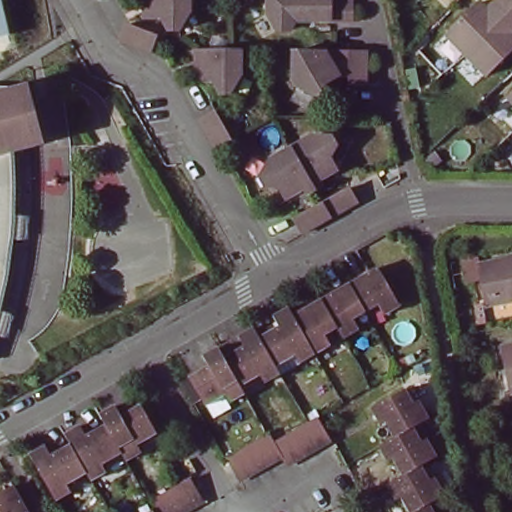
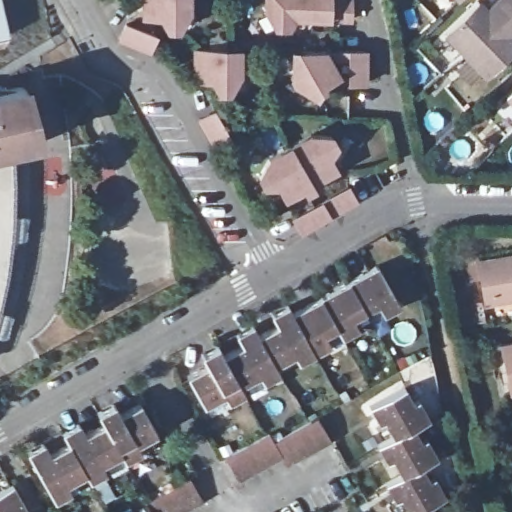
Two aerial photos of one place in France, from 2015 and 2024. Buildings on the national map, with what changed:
unchanged [(0,35),(0,0),(2,0),(10,33),(0,35)]
unchanged [(182,29),(171,29),(162,14),(157,17),(155,17),(154,18),(153,18),(152,17),(151,16),(150,15),(147,9),(154,5),(151,0),(193,0),(193,11),(182,29)]
unchanged [(293,29),(280,28),(271,12),(271,0),(357,0),(357,19),(320,19),(315,10),(307,13),(301,14),(293,29)]
unchanged [(478,0),(487,8),(495,0),(512,0),(512,8),(466,53),(465,53),(445,32),(477,0),(478,0)]
unchanged [(512,8),(512,31),(510,33),(512,35),(512,49),(486,74),(465,53),(466,53),(512,8)]
unchanged [(150,50),(120,39),(125,23),(155,34),(150,50)]
unchanged [(201,49),(245,49),(245,75),(235,92),(223,92),(214,77),(209,80),(208,81),(206,81),(204,81),(203,80),(202,79),(198,73),(206,69),(201,60),(201,49)]
unchanged [(278,49),(352,50),(351,82),(334,82),(335,57),(311,57),(310,66),(316,70),(319,72),(319,76),(317,79),(314,81),(310,80),(301,96),(280,85),(275,76),(284,71),(278,60),(278,49)]
unchanged [(0,92),(0,87),(18,87),(0,92)]
unchanged [(22,87),(26,89),(28,93),(28,98),(26,102),(22,104),(5,109),(10,152),(12,186),(10,231),(7,255),(1,290),(0,294),(0,92),(18,87),(22,87)]
unchanged [(507,95),(512,90),(512,101),(507,95)]
unchanged [(5,109),(22,104),(28,129),(33,129),(37,131),(39,135),(39,140),(37,144),(33,146),(10,152),(5,109)]
unchanged [(230,138),(216,147),(199,118),(213,110),(230,138)]
unchanged [(316,129),(336,129),(342,139),(335,155),(337,157),(338,161),(336,164),(332,166),(330,165),(325,163),(319,166),(326,179),(319,183),(295,141),(316,129)]
unchanged [(311,187),(304,174),(298,177),(298,185),(297,188),(294,189),(290,188),(287,185),(287,183),(269,180),(263,170),(273,153),(295,141),(319,183),(311,187)]
unchanged [(293,217),(321,201),(348,186),(357,202),(330,217),(302,233),(293,217)]
unchanged [(485,291),(481,272),(462,276),(457,254),(477,250),(479,258),(512,252),(512,293),(486,298),(485,291)]
unchanged [(354,281),(382,265),(404,304),(388,313),(382,303),(370,309),(354,281)]
unchanged [(326,297),(354,281),(370,309),(357,317),(363,327),(348,336),(342,325),(326,297)]
unchanged [(328,333),(335,343),(320,352),(298,313),(326,297),(342,325),(328,333)]
unchanged [(264,336),(283,325),(277,315),(293,305),(298,313),(320,352),(303,361),(298,353),(280,364),(264,336)]
unchanged [(229,355),(247,345),(241,335),(258,325),(264,336),(280,364),(285,372),(268,381),(263,373),(244,384),(229,355)]
unchanged [(511,391),(502,345),(512,343),(512,391),(511,391)]
unchanged [(244,384),(249,392),(232,401),(228,393),(209,404),(193,376),(212,365),(206,354),(223,345),(229,355),(244,384)]
unchanged [(385,419),(379,422),(370,405),(404,387),(412,401),(418,398),(427,417),(412,426),(394,435),(385,419)]
unchanged [(104,423),(98,413),(114,404),(120,414),(140,403),(156,431),(136,443),(140,450),(125,459),(120,451),(104,423)]
unchanged [(272,441),(315,416),(329,440),(285,465),(280,456),(272,441)]
unchanged [(63,433),(79,424),(85,434),(104,423),(120,451),(101,463),(106,470),(90,479),(85,472),(69,443),(63,433)]
unchanged [(392,457),(387,460),(378,444),(394,435),(412,426),(420,440),(425,437),(436,455),(420,464),(402,474),(392,457)]
unchanged [(280,456),(239,479),(226,455),(266,432),(272,441),(280,456)]
unchanged [(85,472),(66,483),(70,490),(55,499),(28,453),(44,444),(49,454),(69,443),(85,472)]
unchanged [(400,496),(395,499),(385,483),(402,474),(420,464),(429,478),(433,476),(444,494),(428,503),(411,512),(410,512),(400,496)]
unchanged [(150,510),(146,501),(188,477),(201,500),(181,512),(151,512),(150,510)]
unchanged [(27,512),(0,512),(0,491),(12,484),(27,512)]
unchanged [(428,503),(433,512),(411,512),(428,503)]
unchanged [(151,512),(146,512),(150,510),(151,512)]

